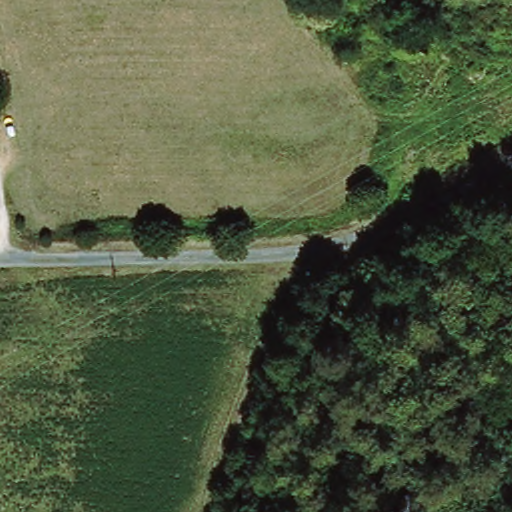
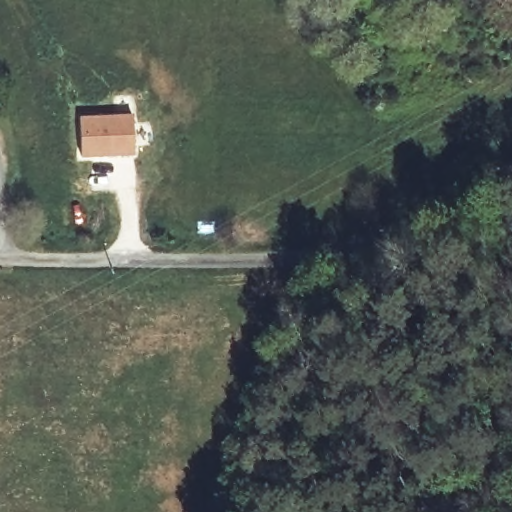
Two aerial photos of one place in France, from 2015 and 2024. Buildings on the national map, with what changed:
unchanged [(445,13),(435,44),(380,26),(388,0),(403,0),(445,13)]
new [(132,112),(135,155),(80,157),(78,114),(132,112)]

